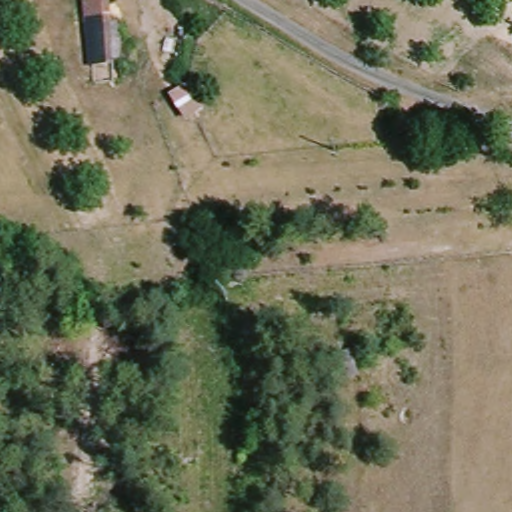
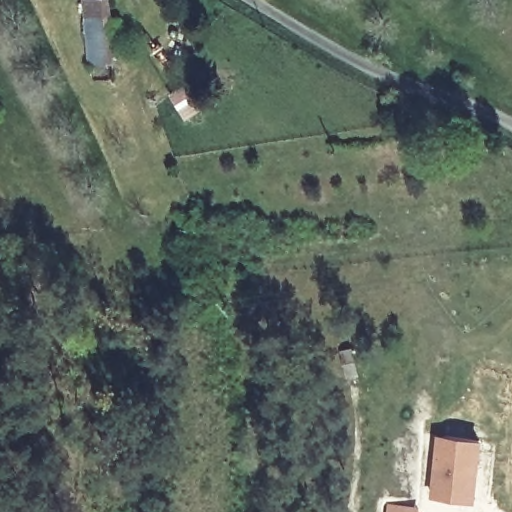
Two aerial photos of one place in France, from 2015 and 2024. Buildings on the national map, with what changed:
new [(445,497),(431,496),(434,440),(477,441),(475,459),(472,500),(445,497)]

